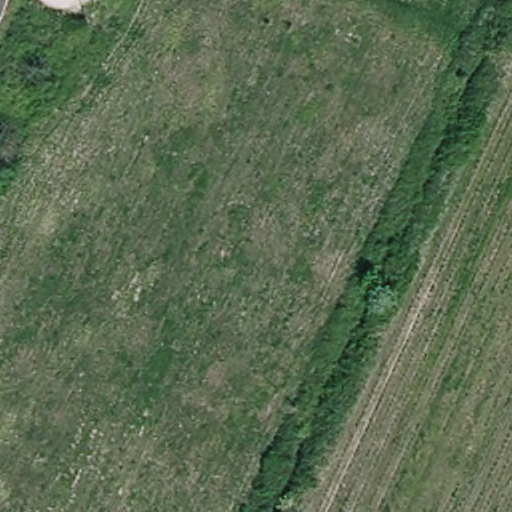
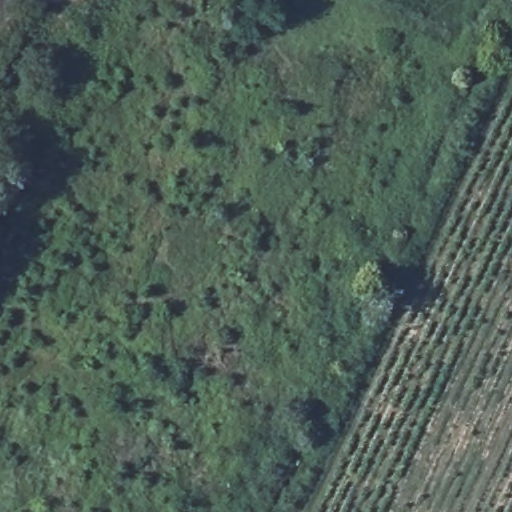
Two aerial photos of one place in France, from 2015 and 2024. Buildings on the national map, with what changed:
[]

